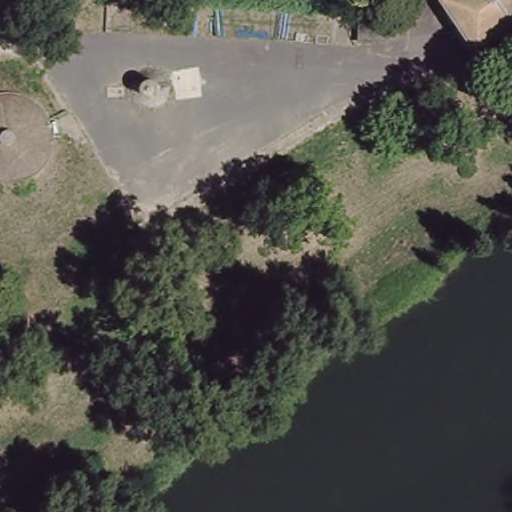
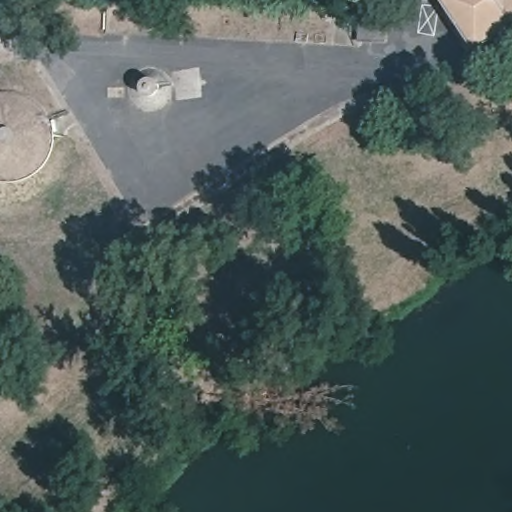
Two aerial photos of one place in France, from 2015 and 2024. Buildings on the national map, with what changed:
unchanged [(449,0),(512,0),(512,31),(481,50),(449,0)]
unchanged [(391,35),(365,35),(366,9),(392,10),(391,35)]

